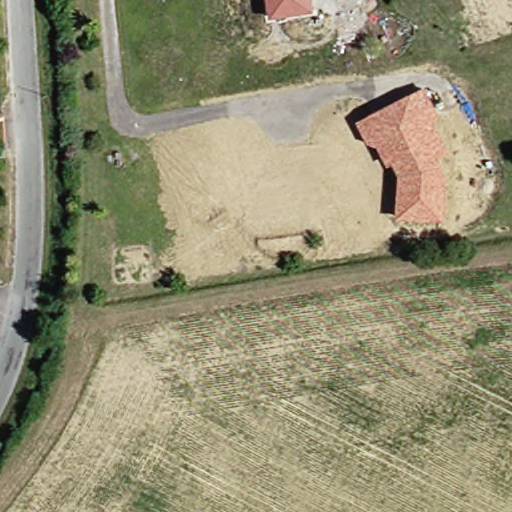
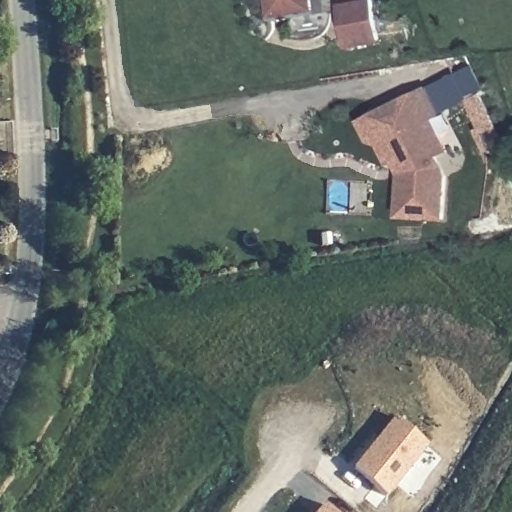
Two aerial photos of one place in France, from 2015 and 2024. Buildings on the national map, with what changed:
unchanged [(270,17),(267,0),(312,0),(313,12),(270,17)]
new [(369,0),(376,40),(343,47),(336,6),(369,0)]
unchanged [(438,116),(433,119),(448,154),(438,157),(447,175),(443,221),(397,219),(398,176),(393,164),(386,167),(376,147),(366,142),(355,121),(425,87),(438,116)]
new [(387,497),(352,468),(393,417),(428,446),(387,497)]
new [(322,505),(330,512),(316,512),(322,505)]

